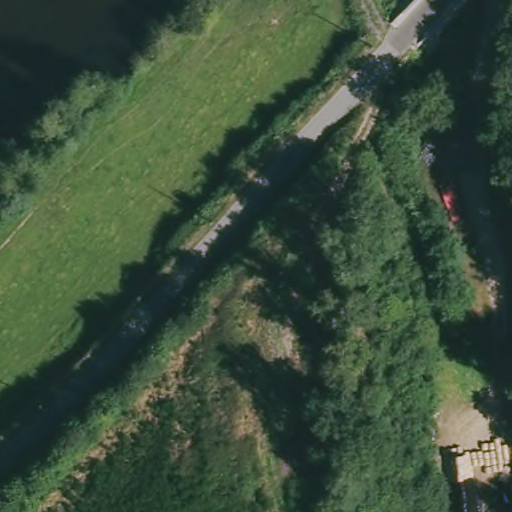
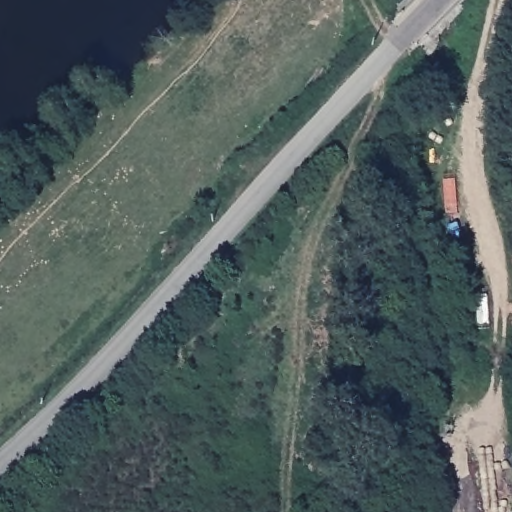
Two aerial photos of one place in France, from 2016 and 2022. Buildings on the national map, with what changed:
[]

